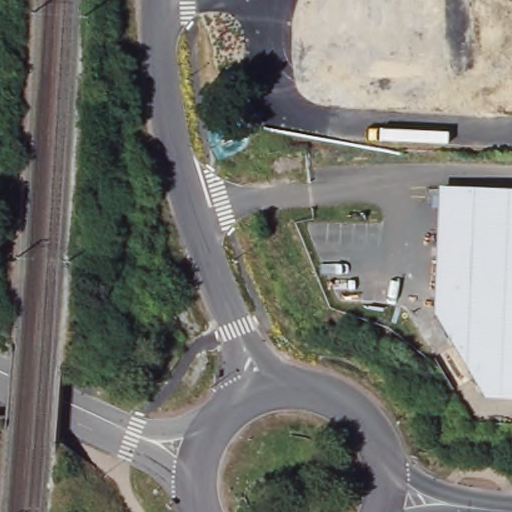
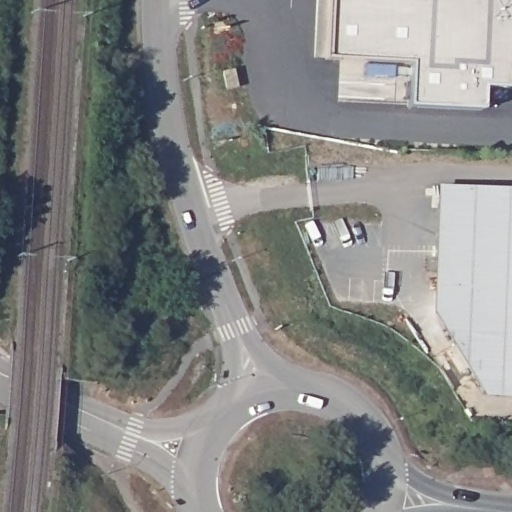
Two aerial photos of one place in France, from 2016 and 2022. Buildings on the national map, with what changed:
new [(508,68),(507,89),(481,87),(480,110),(408,106),(410,63),(326,59),(328,0),(512,0),(512,68),(508,68)]
demolished [(455,112),(454,124),(407,123),(406,110),(396,109),(394,90),(457,92),(461,0),(512,0),(512,114),(455,112)]
unchanged [(512,191),(512,393),(488,393),(441,317),(444,189),(512,191)]

